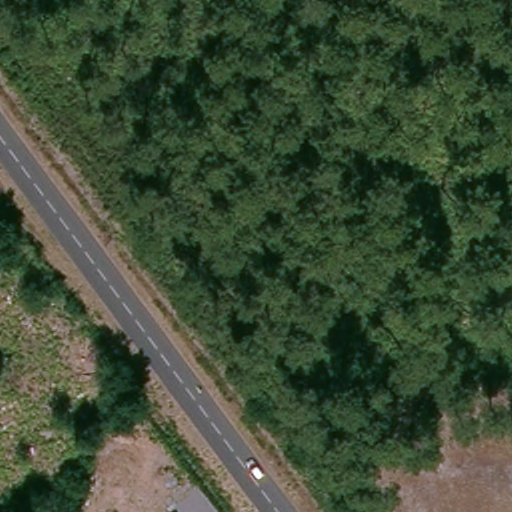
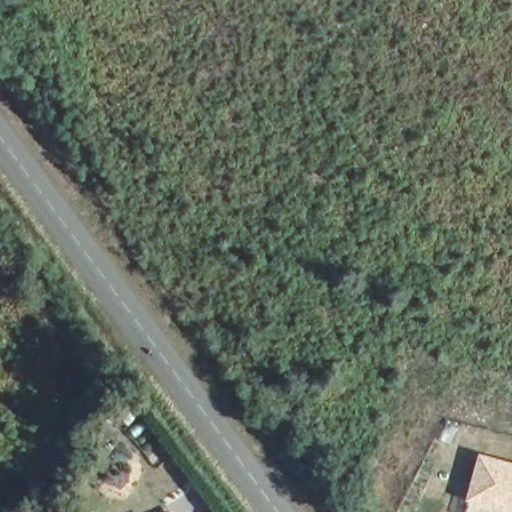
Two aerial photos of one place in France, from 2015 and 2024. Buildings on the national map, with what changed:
new [(467,500),(478,456),(512,466),(512,512),(507,512),(467,500)]

